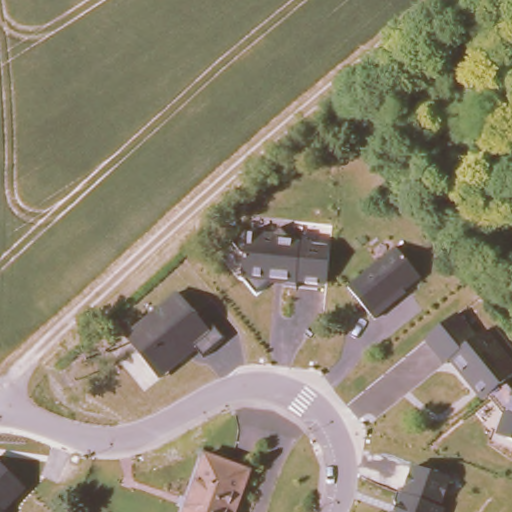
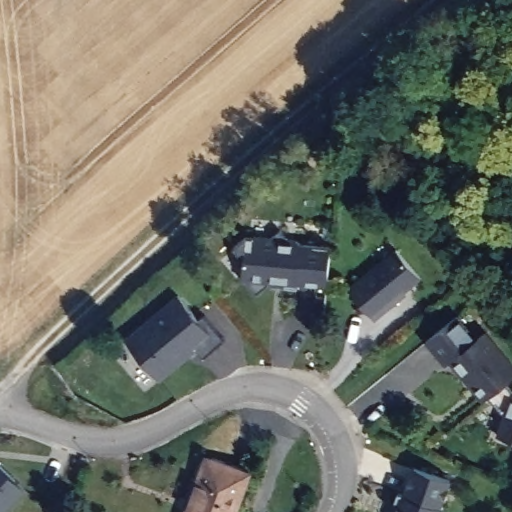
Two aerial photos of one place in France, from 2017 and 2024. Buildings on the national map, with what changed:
unchanged [(242,277),(243,252),(237,245),(254,233),(275,235),(282,230),(297,238),(305,245),(330,247),(325,286),(295,283),(294,287),(268,284),(257,294),(242,277)]
unchanged [(350,288),(396,250),(420,281),(375,320),(350,288)]
unchanged [(127,336),(177,296),(217,346),(202,359),(196,350),(162,380),(127,336)]
unchanged [(505,414),(497,404),(489,395),(481,401),(450,363),(444,367),(426,340),(458,316),(479,337),(485,331),(512,364),(512,379),(506,385),(512,394),(512,442),(496,436),(496,424),(505,414)]
unchanged [(183,512),(204,457),(245,471),(230,512),(183,512)]
unchanged [(27,491),(9,512),(0,512),(0,464),(27,491)]
unchanged [(451,481),(442,506),(446,510),(445,512),(395,512),(412,467),(451,481)]

